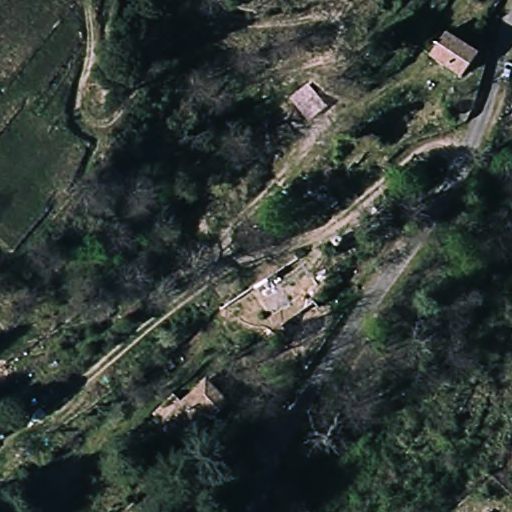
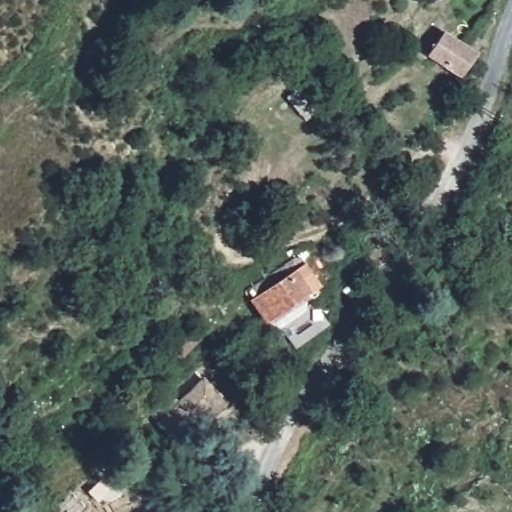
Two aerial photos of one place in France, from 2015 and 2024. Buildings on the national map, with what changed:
unchanged [(467,46),(449,64),(431,45),(449,27),(467,46)]
new [(323,292),(268,327),(265,323),(249,300),(305,262),(322,287),(323,292)]
unchanged [(185,402),(208,381),(229,405),(215,418),(209,410),(175,439),(160,422),(165,418),(158,410),(177,394),(185,402)]

